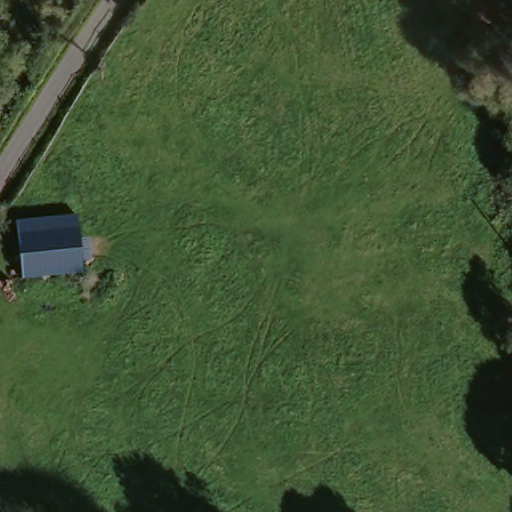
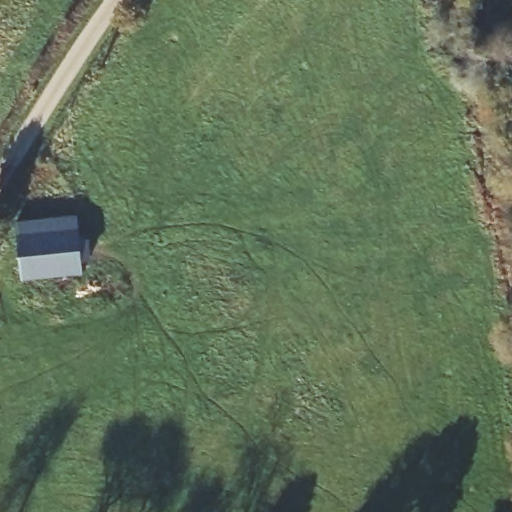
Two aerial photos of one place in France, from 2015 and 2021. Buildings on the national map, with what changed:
unchanged [(18,279),(17,219),(78,214),(80,273),(18,279)]

